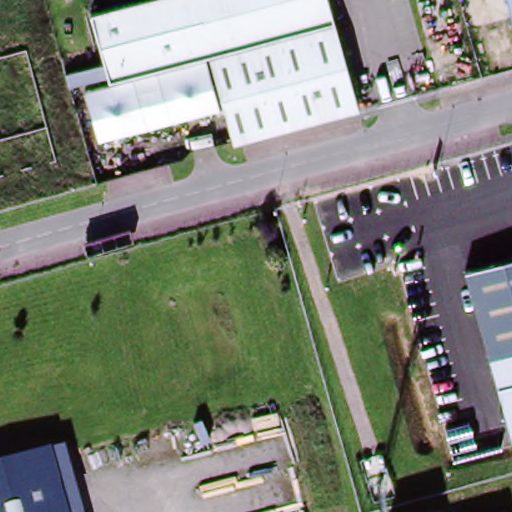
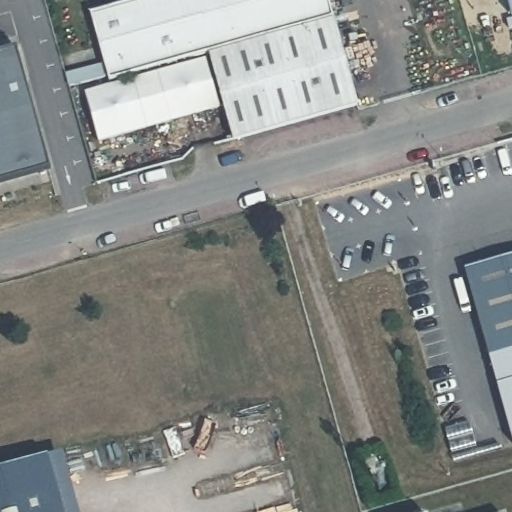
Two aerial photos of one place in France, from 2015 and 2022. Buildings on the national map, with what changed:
unchanged [(207,55),(109,81),(90,14),(139,0),(327,0),(357,106),(231,141),(207,55)]
new [(0,183),(0,53),(16,48),(49,170),(0,183)]
unchanged [(109,81),(207,55),(221,105),(98,139),(85,90),(109,81)]
unchanged [(464,270),(512,256),(512,351),(489,357),(464,270)]
unchanged [(512,351),(512,439),(489,357),(512,351)]
unchanged [(48,460),(63,512),(0,512),(0,474),(48,460)]

